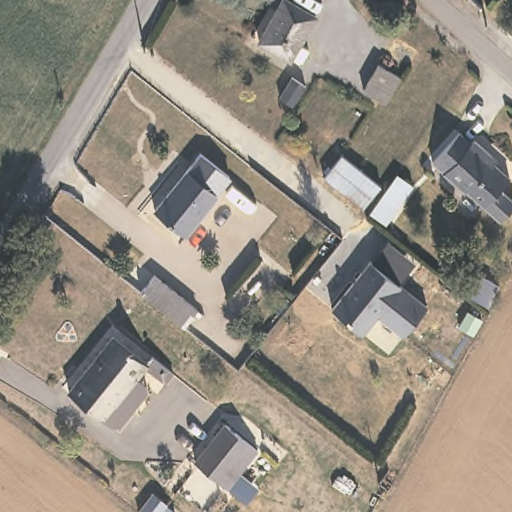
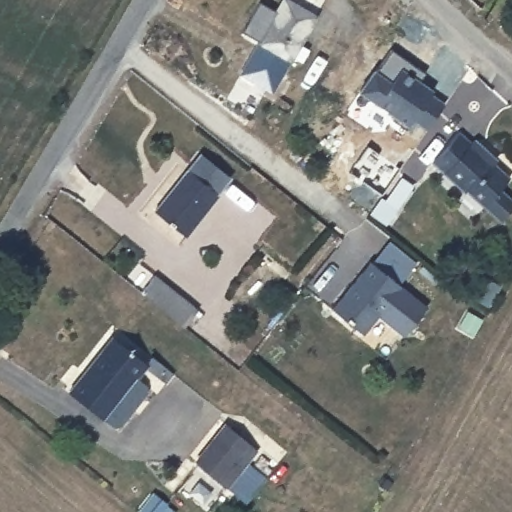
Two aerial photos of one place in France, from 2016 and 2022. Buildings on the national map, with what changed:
unchanged [(310,15),(295,44),(301,47),(296,59),(288,55),(286,60),(254,42),(275,0),(283,0),(310,15)]
demolished [(415,48),(403,67),(390,58),(401,39),(415,48)]
new [(420,82),(433,92),(406,132),(390,121),(394,116),(362,94),(393,49),(427,71),(420,82)]
demolished [(396,82),(385,104),(357,88),(368,66),(396,82)]
unchanged [(473,136),(490,150),(485,154),(509,173),(483,203),(434,161),(458,131),(470,140),(473,136)]
unchanged [(151,221),(183,180),(196,163),(226,186),(213,203),(180,244),(151,221)]
unchanged [(414,186),(386,225),(368,215),(395,175),(414,186)]
unchanged [(425,303),(402,334),(376,314),(362,332),(331,307),(368,259),(425,303)]
unchanged [(197,308),(183,329),(139,294),(154,274),(197,308)]
unchanged [(140,388),(108,430),(95,421),(62,393),(104,336),(137,363),(143,355),(164,372),(157,382),(135,366),(127,378),(140,388)]
unchanged [(227,489),(218,481),(196,462),(227,427),(247,445),(257,453),(227,489)]
unchanged [(168,501),(166,505),(175,510),(174,512),(137,512),(154,491),(168,501)]

